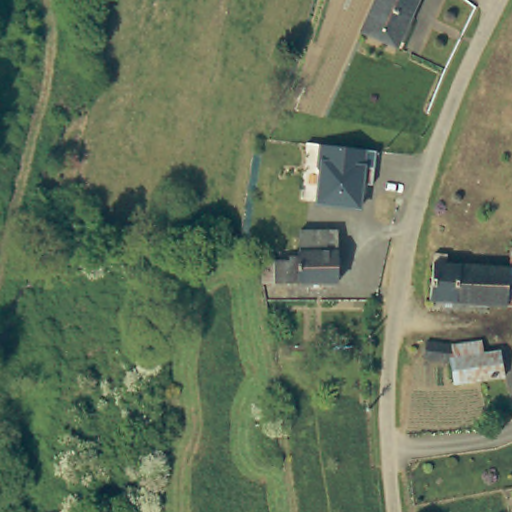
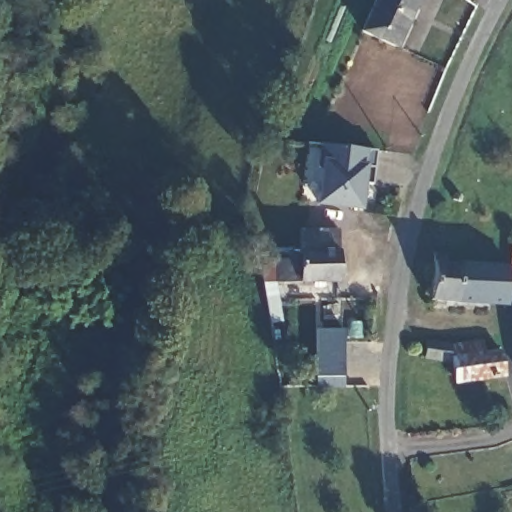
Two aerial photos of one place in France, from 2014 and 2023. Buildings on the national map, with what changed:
unchanged [(375,0),(418,0),(397,47),(362,31),(375,0)]
unchanged [(318,171),(315,168),(320,144),(375,150),(370,187),(362,186),(360,208),(317,204),(318,171)]
unchanged [(337,282),(262,282),(261,260),(290,260),(290,257),(297,257),(298,252),(299,252),(300,230),(337,229),(337,282)]
unchanged [(433,253),(447,254),(447,263),(510,267),(511,247),(512,247),(512,305),(430,300),(433,253)]
new [(315,333),(342,332),(342,379),(343,387),(315,387),(315,380),(315,333)]
unchanged [(482,379),(455,383),(451,362),(424,359),(426,340),(451,344),(450,358),(500,351),(504,376),(482,379)]

